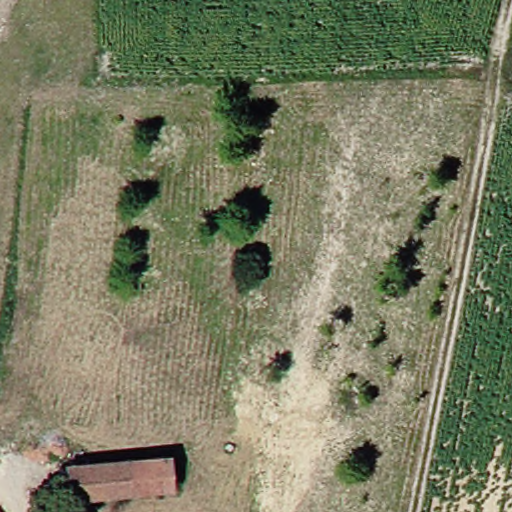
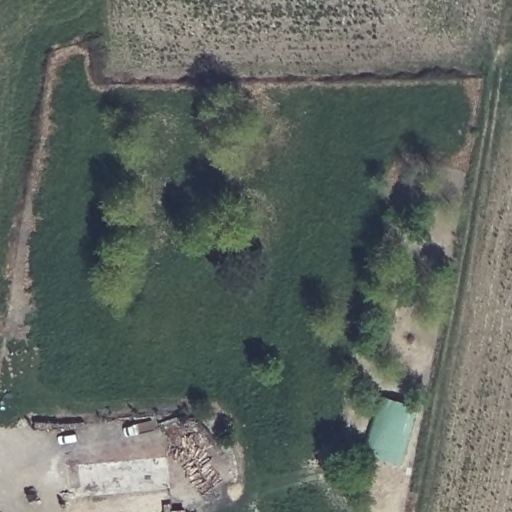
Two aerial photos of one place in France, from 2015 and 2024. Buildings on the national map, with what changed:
new [(361,452),(380,393),(418,406),(401,465),(361,452)]
unchanged [(58,463),(137,462),(160,461),(161,487),(138,488),(57,490),(58,463)]

